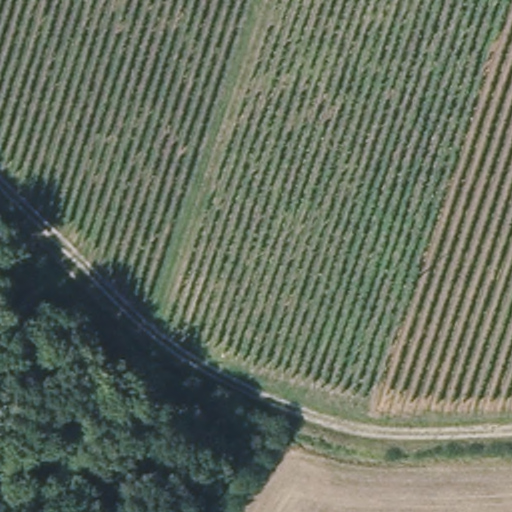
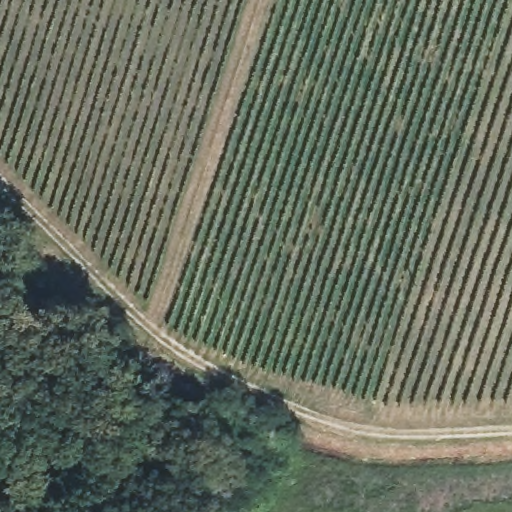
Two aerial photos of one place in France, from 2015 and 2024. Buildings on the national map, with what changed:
[]

